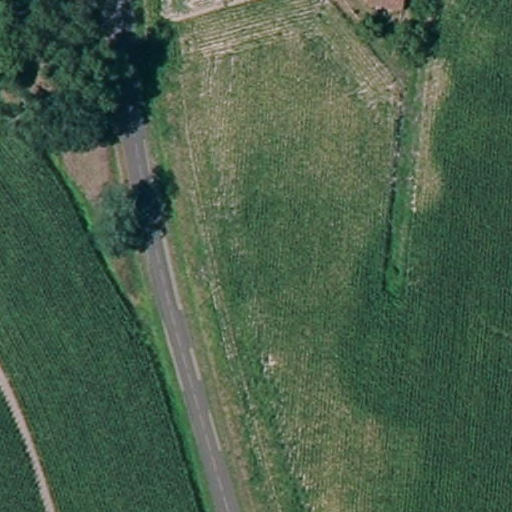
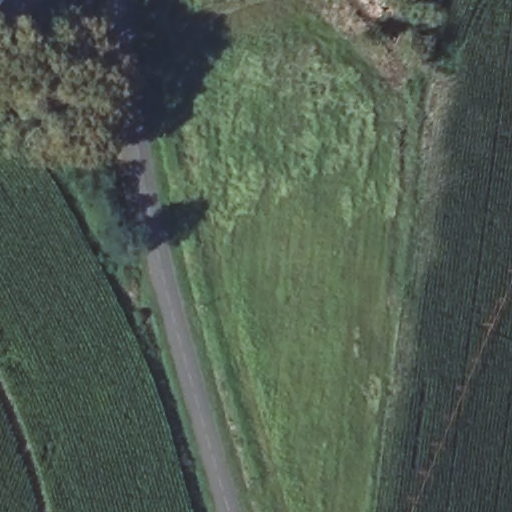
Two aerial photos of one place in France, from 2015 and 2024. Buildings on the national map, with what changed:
unchanged [(370,0),(403,0),(402,8),(370,1),(370,0)]

